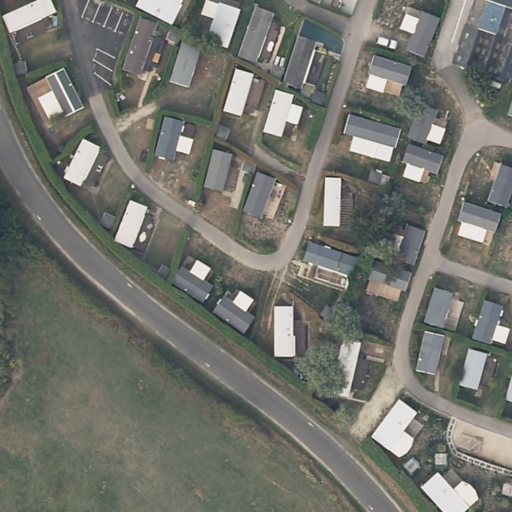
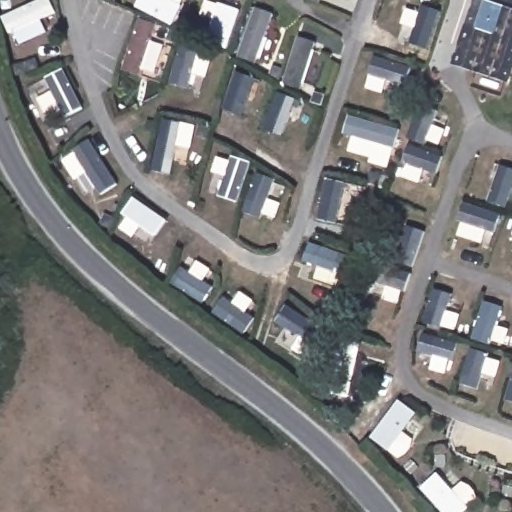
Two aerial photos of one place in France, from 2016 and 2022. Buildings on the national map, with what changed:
unchanged [(472,0),(512,0),(512,71),(508,83),(452,65),(472,0)]

